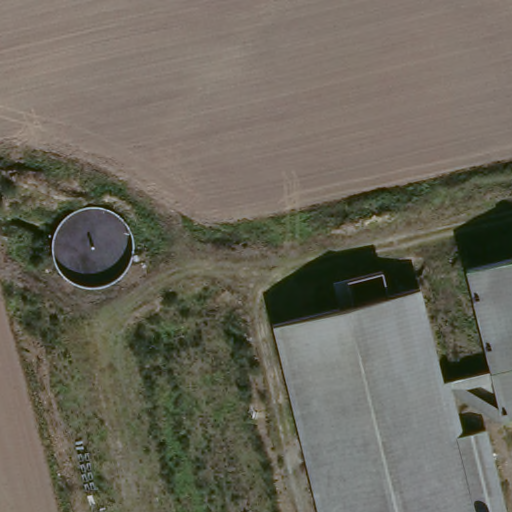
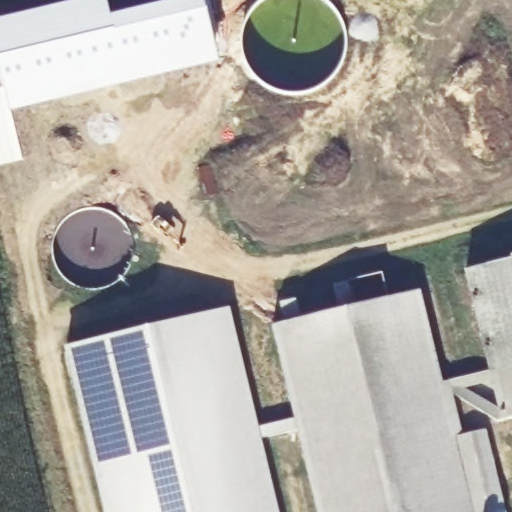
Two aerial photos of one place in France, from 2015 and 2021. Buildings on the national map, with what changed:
unchanged [(512,367),(483,374),(459,272),(512,260),(512,367)]
unchanged [(420,292),(440,379),(455,380),(463,432),(481,428),(503,512),(315,512),(270,331),(420,292)]
new [(64,347),(230,307),(277,512),(104,512),(64,347)]
unchanged [(512,367),(512,414),(499,417),(483,374),(492,372),(512,367)]

